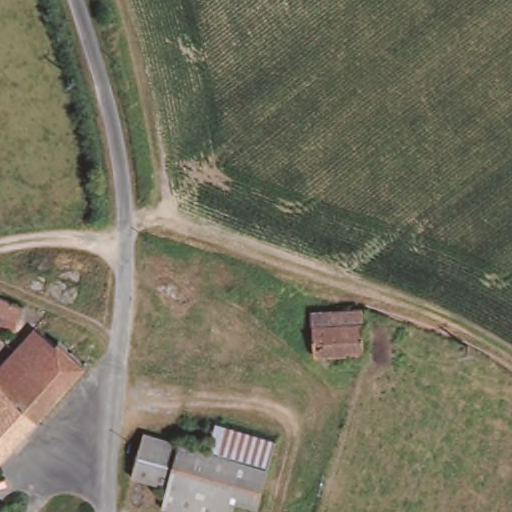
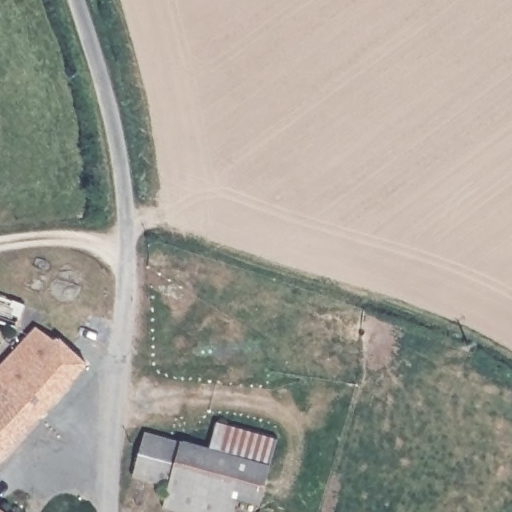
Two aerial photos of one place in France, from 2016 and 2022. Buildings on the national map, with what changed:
unchanged [(15,331),(0,325),(0,293),(29,303),(15,331)]
demolished [(318,358),(314,314),(362,308),(366,323),(368,352),(318,358)]
unchanged [(83,365),(38,415),(0,381),(0,358),(35,322),(83,365)]
unchanged [(0,460),(0,382),(38,415),(0,460)]
unchanged [(218,419),(277,435),(269,465),(209,449),(218,419)]
unchanged [(169,496),(131,486),(148,432),(209,449),(269,465),(259,500),(240,495),(236,512),(164,512),(169,496)]
unchanged [(0,509),(4,512),(0,512),(0,509)]

